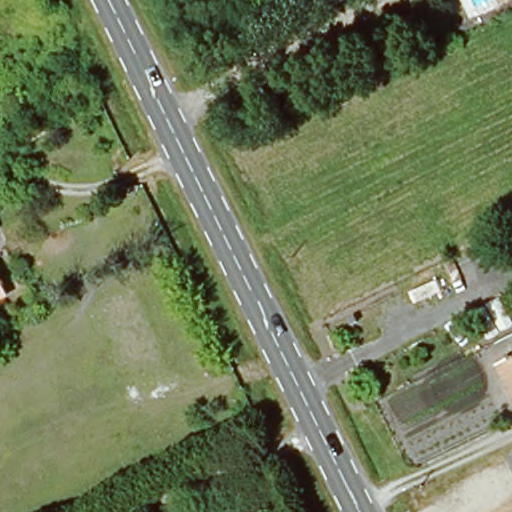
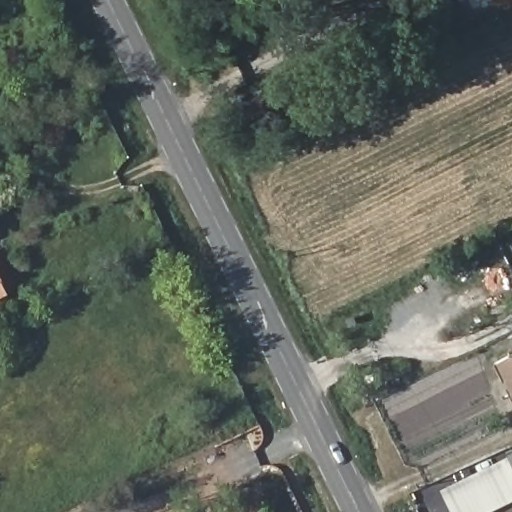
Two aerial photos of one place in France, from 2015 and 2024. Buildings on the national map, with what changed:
unchanged [(6,297),(0,300),(0,283),(6,297)]
unchanged [(512,392),(500,368),(512,362),(512,392)]
unchanged [(512,460),(512,465),(510,461),(512,460)]
new [(512,465),(512,503),(495,512),(451,512),(441,494),(510,461),(512,465)]

